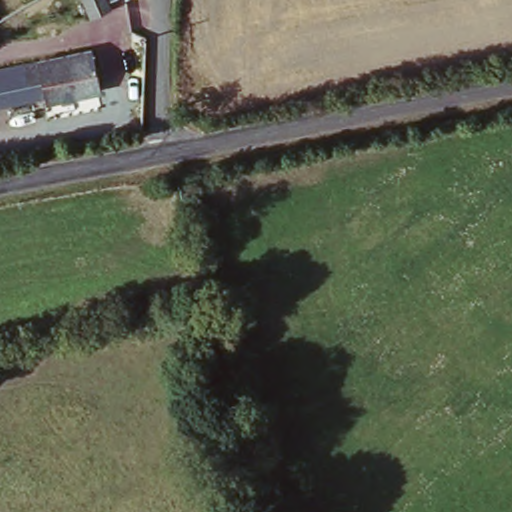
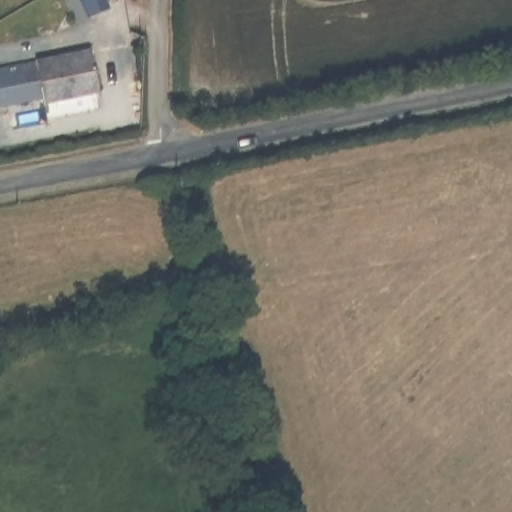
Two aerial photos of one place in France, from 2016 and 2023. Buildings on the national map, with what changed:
unchanged [(89,13),(84,0),(105,0),(108,7),(89,13)]
unchanged [(22,62),(90,49),(97,91),(43,102),(41,90),(27,91),(22,62)]
unchanged [(41,90),(43,102),(0,110),(0,66),(22,62),(27,91),(41,90)]

